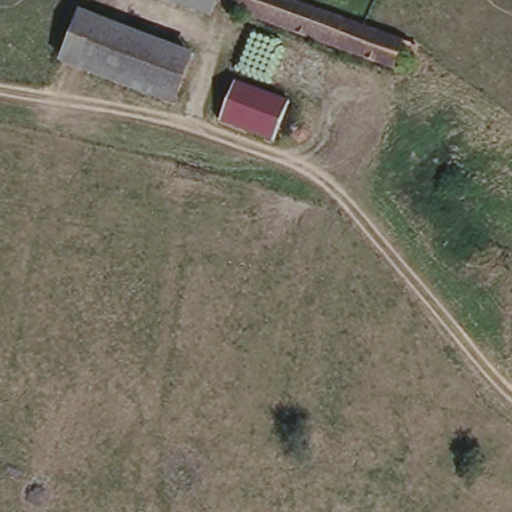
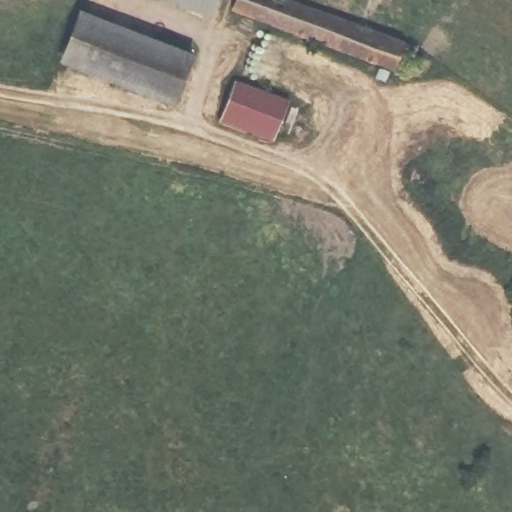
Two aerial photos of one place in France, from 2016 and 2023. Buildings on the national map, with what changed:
unchanged [(210,21),(152,0),(218,0),(210,21)]
unchanged [(391,70),(234,4),(236,0),(307,0),(403,42),(391,70)]
unchanged [(172,102),(57,60),(78,6),(192,52),(172,102)]
unchanged [(275,123),(269,136),(218,115),(234,78),(285,99),(275,123)]

